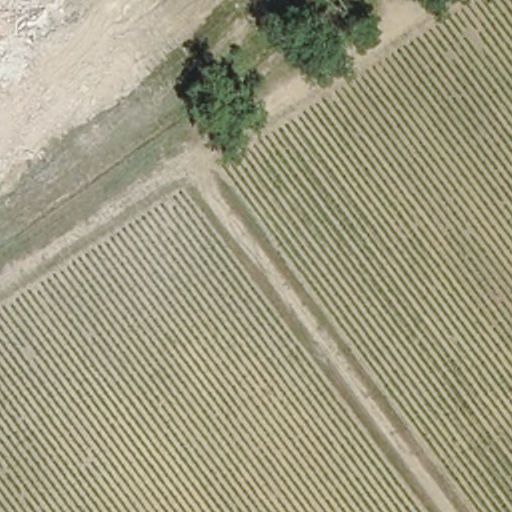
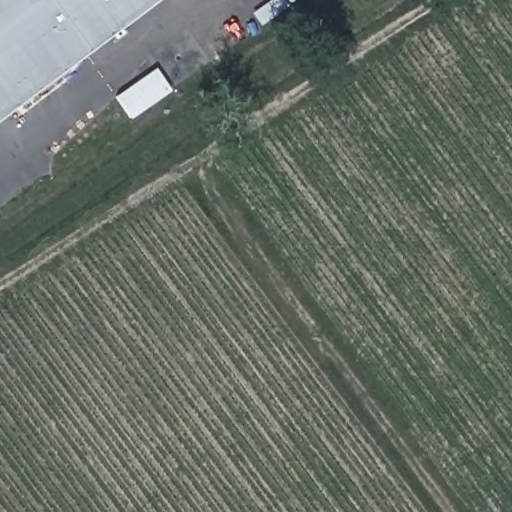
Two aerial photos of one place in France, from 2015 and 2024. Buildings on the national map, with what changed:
demolished [(0,77),(0,0),(26,0),(55,40),(6,83),(0,77)]
new [(0,0),(155,0),(0,117),(0,0)]
new [(131,119),(115,97),(155,69),(171,91),(131,119)]

